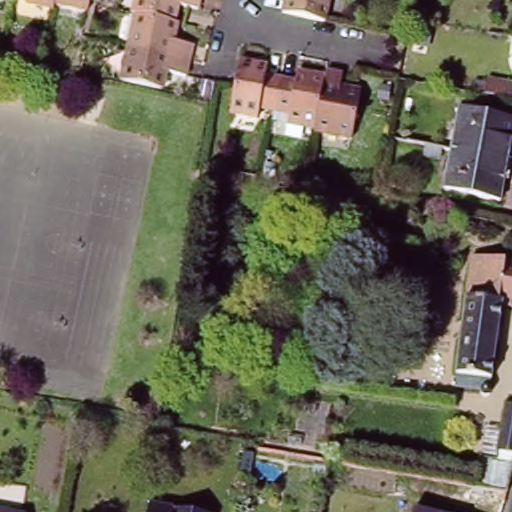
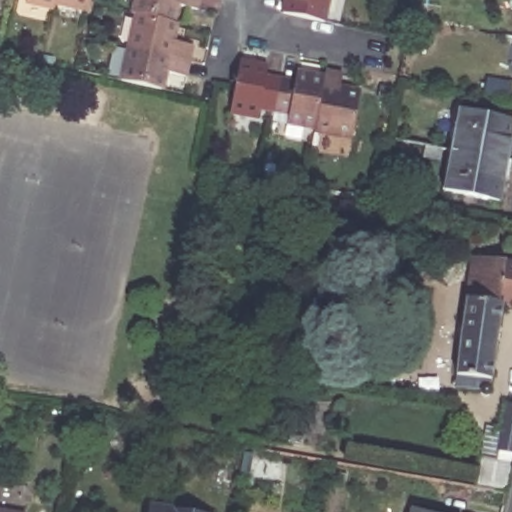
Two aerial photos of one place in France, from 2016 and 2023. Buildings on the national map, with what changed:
unchanged [(56,2),(55,6),(29,1),(30,0),(57,0),(56,2)]
unchanged [(90,10),(56,2),(57,0),(93,0),(90,10)]
unchanged [(198,11),(176,7),(173,23),(134,15),(131,14),(135,0),(200,0),(198,11)]
unchanged [(326,27),(286,19),(289,3),(278,1),(278,0),(333,0),(326,27)]
unchanged [(193,44),(188,62),(127,48),(134,15),(173,23),(175,24),(171,40),(193,44)]
unchanged [(164,73),(161,91),(119,82),(127,48),(188,62),(185,77),(164,73)]
unchanged [(269,115),(254,112),(251,121),(224,115),(228,92),(236,63),(249,65),(264,69),(261,78),(277,82),(269,115)]
unchanged [(284,129),(286,118),(269,115),(277,82),(294,86),(296,76),(307,78),(321,81),(309,134),(284,129)]
unchanged [(339,92),(359,96),(349,144),(309,136),(309,134),(321,81),(322,78),(341,82),(339,92)]
unchanged [(489,85),(490,78),(512,83),(512,91),(511,99),(487,95),(473,92),(474,83),(489,85)]
unchanged [(461,105),(512,115),(512,144),(509,156),(453,145),(461,105)]
unchanged [(407,152),(409,141),(442,148),(440,159),(407,152)]
unchanged [(446,186),(453,145),(509,156),(501,197),(446,186)]
unchanged [(489,388),(489,389),(491,392),(491,394),(489,397),(487,398),(484,398),(482,397),(480,395),(479,392),(480,390),(454,385),(462,328),(472,254),(481,255),(512,261),(512,305),(502,303),(489,388)]
unchanged [(512,467),(504,504),(474,498),(482,459),(479,458),(487,423),(496,426),(502,400),(512,403),(512,467)]
unchanged [(163,512),(146,512),(147,509),(163,512)]
unchanged [(411,512),(412,510),(422,512),(411,512)]

